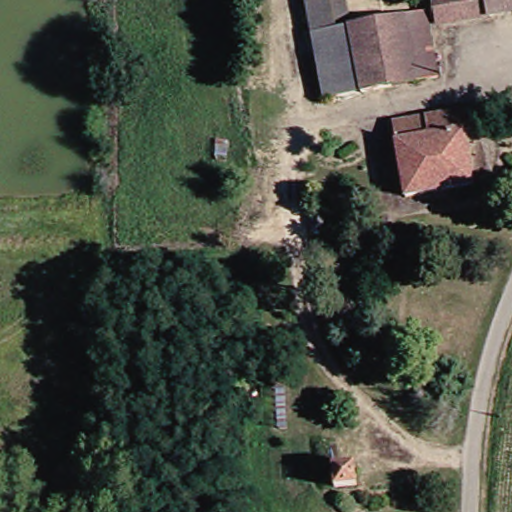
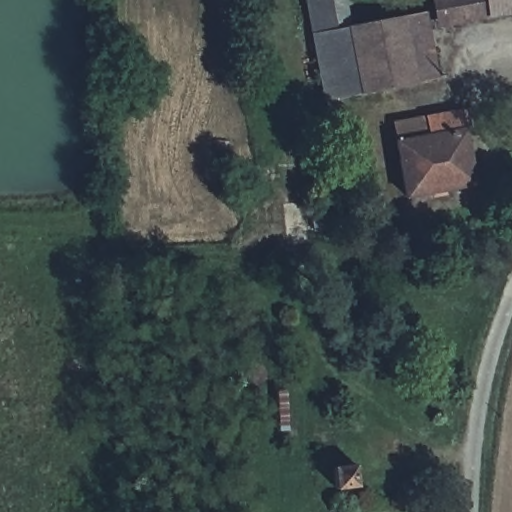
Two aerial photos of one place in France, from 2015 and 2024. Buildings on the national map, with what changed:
unchanged [(348,26),(312,34),(305,0),(343,0),(348,26)]
unchanged [(436,24),(433,9),(432,0),(486,0),(489,15),(468,19),(436,24)]
unchanged [(512,10),(489,15),(486,0),(512,0),(512,10)]
unchanged [(348,26),(424,11),(438,77),(362,95),(348,26)]
unchanged [(348,26),(362,95),(327,103),(312,34),(348,26)]
unchanged [(405,199),(394,144),(390,124),(419,117),(456,107),(472,103),(476,124),(460,128),(470,183),(405,199)]
unchanged [(357,486),(333,488),(330,470),(355,466),(357,486)]

